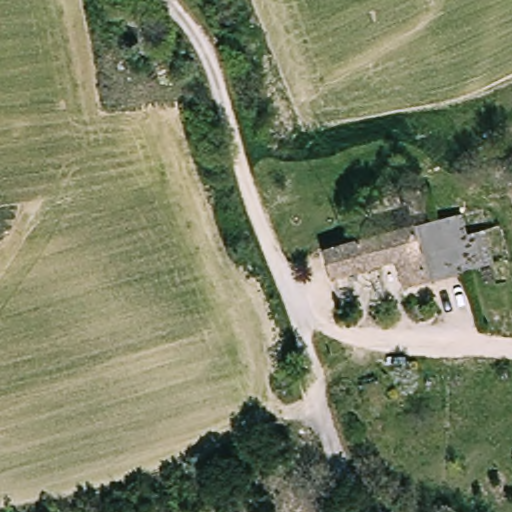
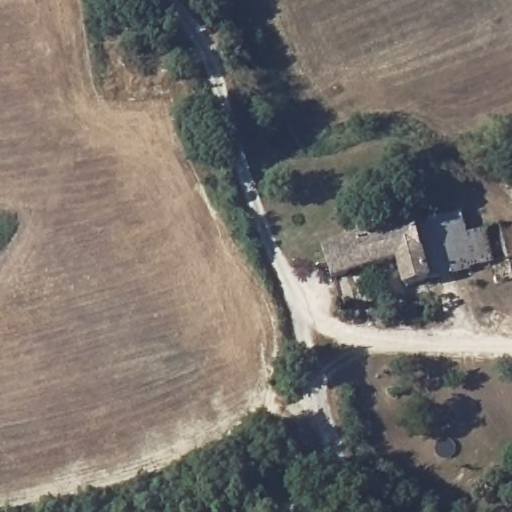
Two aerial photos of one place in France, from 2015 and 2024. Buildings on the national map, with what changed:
unchanged [(427,281),(404,287),(396,263),(331,280),(321,249),(411,225),(457,215),(461,232),(481,228),(490,266),(427,281)]

